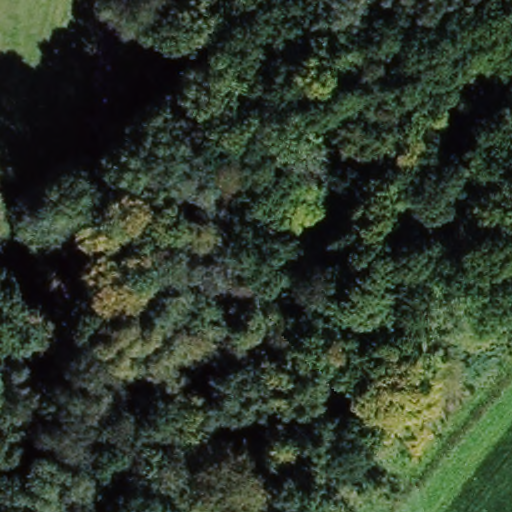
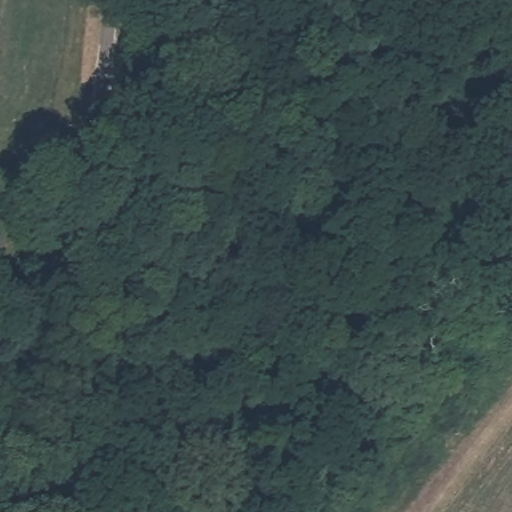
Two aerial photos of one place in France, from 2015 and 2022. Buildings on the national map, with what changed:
[]

